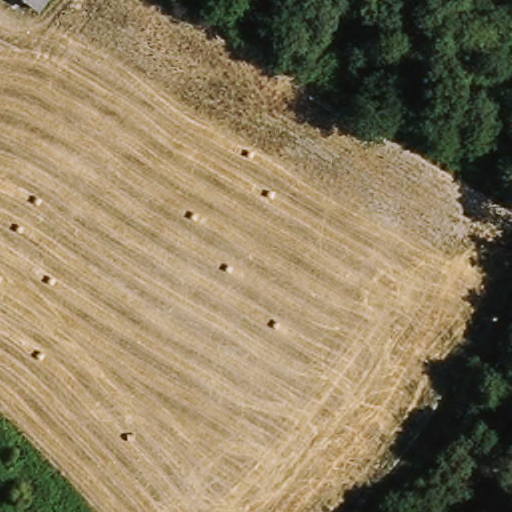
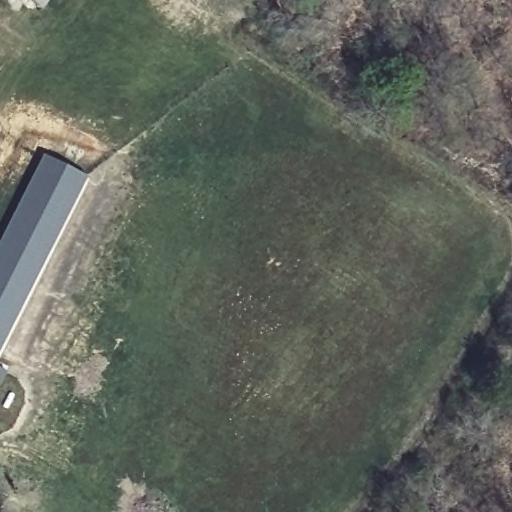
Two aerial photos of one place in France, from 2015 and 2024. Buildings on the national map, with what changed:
unchanged [(38,11),(23,0),(46,0),(38,11)]
new [(0,349),(0,238),(43,154),(86,176),(0,349)]
new [(0,384),(0,369),(6,372),(0,384)]

